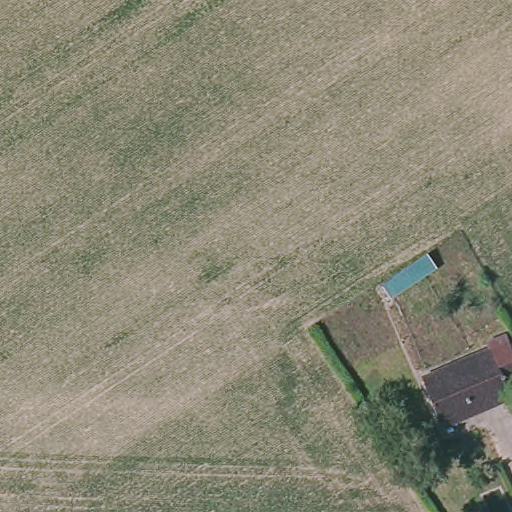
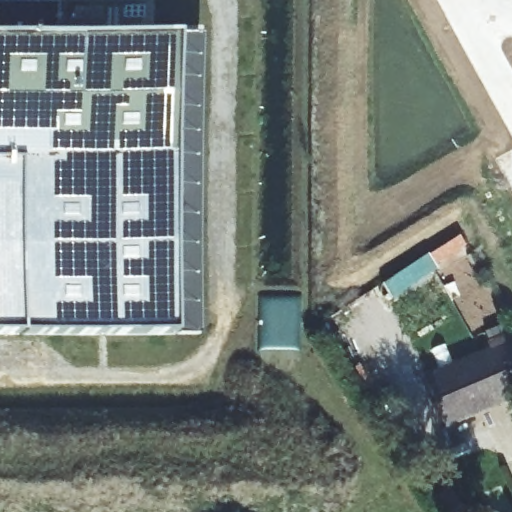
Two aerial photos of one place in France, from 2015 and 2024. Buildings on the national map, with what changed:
new [(21,30),(191,30),(186,337),(0,336),(0,0),(21,0),(21,30)]
unchanged [(431,249),(443,266),(396,298),(383,279),(431,249)]
unchanged [(507,390),(442,419),(422,369),(486,340),(507,390)]

